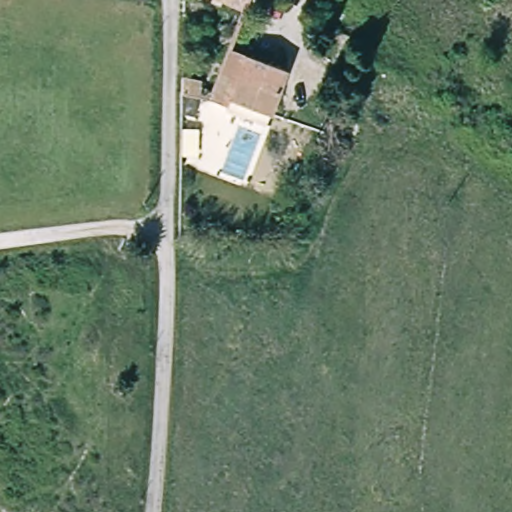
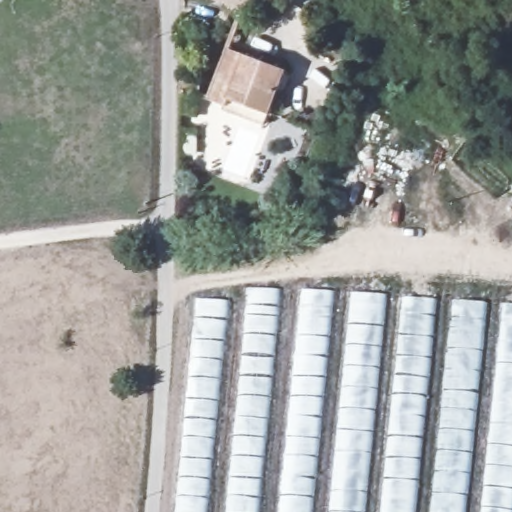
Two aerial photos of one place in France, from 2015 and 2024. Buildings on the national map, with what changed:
unchanged [(215,0),(249,0),(243,14),(215,0)]
unchanged [(229,51),(285,73),(268,113),(213,95),(229,51)]
unchanged [(180,79),(199,81),(196,98),(180,94),(180,79)]
new [(257,512),(224,512),(246,289),(279,289),(257,512)]
new [(302,289),(333,291),(310,512),(279,512),(302,289)]
new [(364,512),(330,512),(351,293),(386,296),(364,512)]
new [(403,297),(434,300),(412,512),(381,512),(403,297)]
new [(196,298),(228,299),(208,512),(175,512),(196,298)]
new [(466,512),(432,512),(454,300),(488,303),(466,512)]
new [(503,304),(512,305),(512,512),(481,512),(503,304)]

